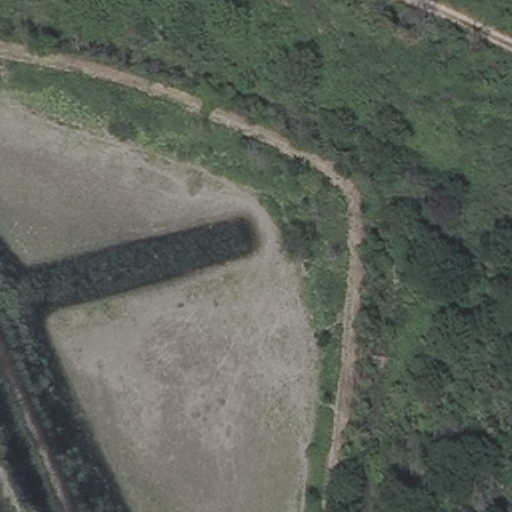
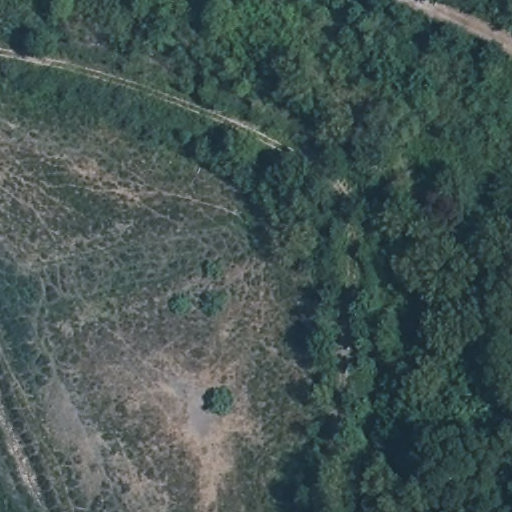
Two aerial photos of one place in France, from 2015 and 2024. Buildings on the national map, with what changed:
[]

